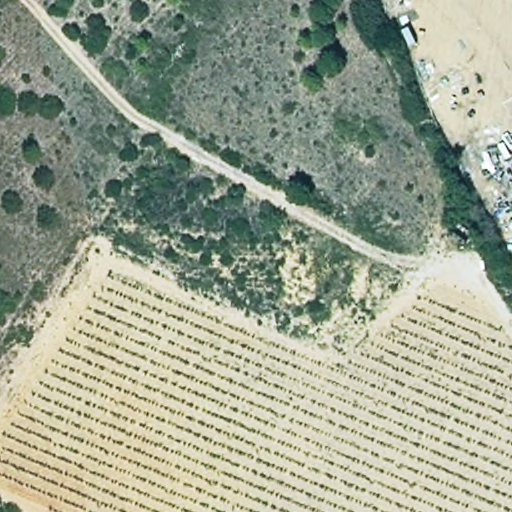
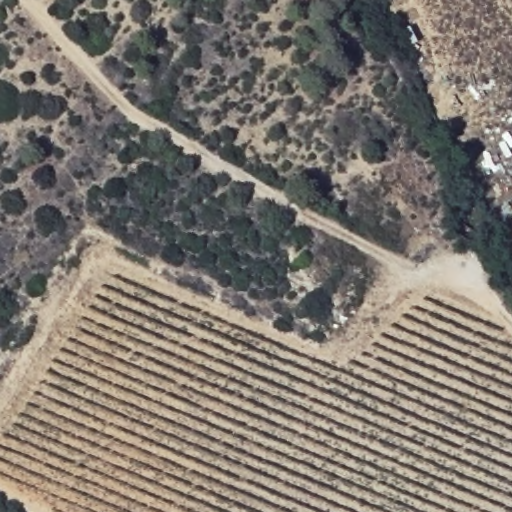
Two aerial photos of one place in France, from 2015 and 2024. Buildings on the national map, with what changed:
unchanged [(473,222),(467,243),(452,238),(459,217),(473,222)]

